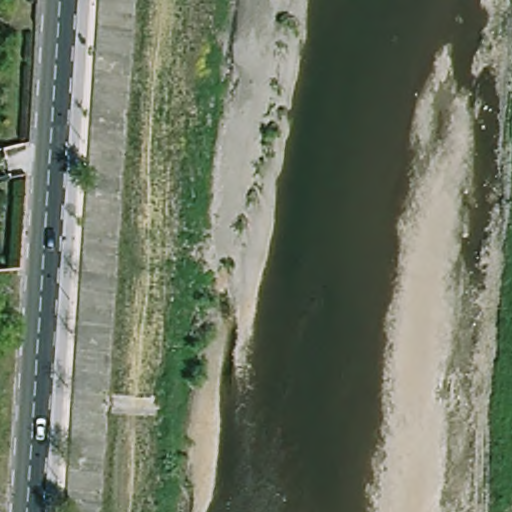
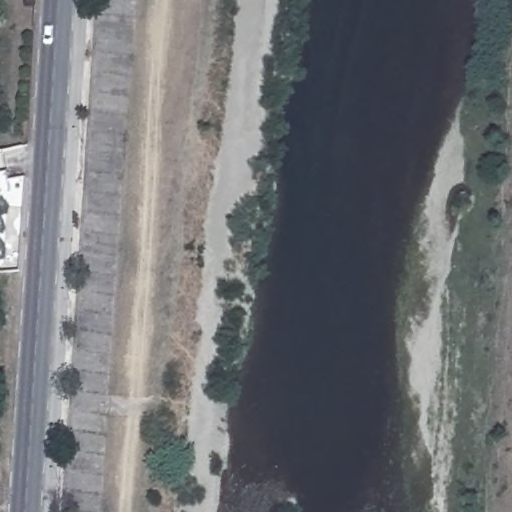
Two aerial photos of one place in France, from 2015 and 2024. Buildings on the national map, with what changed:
[]

